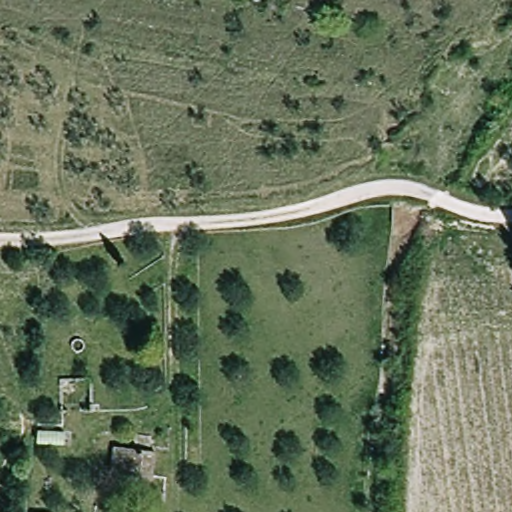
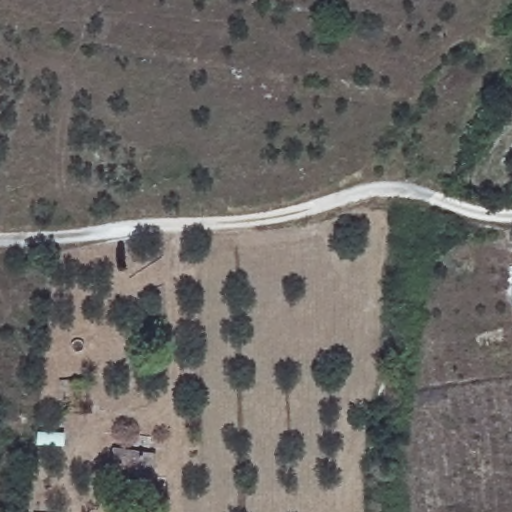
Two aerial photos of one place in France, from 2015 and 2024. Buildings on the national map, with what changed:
unchanged [(113,450),(156,455),(151,482),(110,476),(113,450)]

